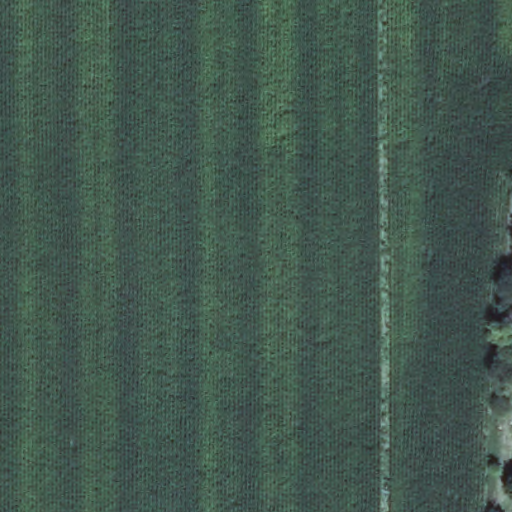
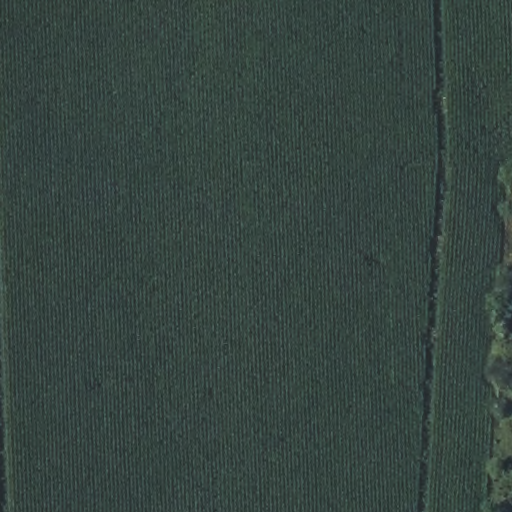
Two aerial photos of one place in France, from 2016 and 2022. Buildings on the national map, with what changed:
[]

